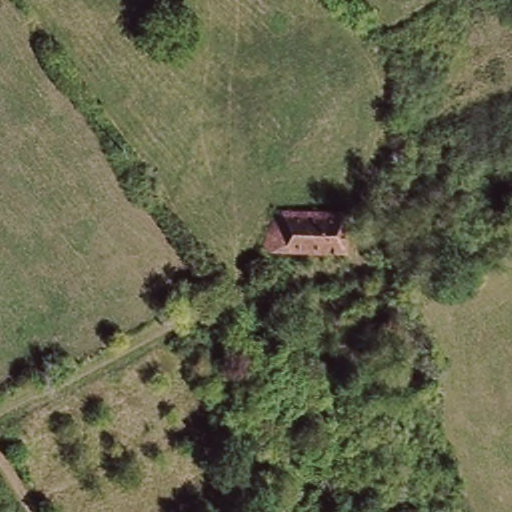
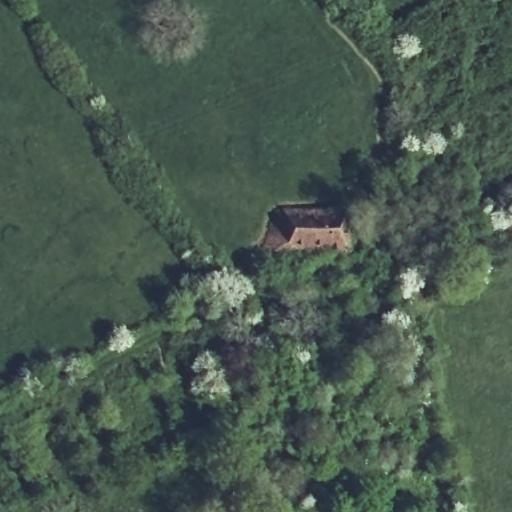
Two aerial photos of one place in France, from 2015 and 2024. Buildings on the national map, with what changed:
unchanged [(269,209),(353,210),(354,252),(266,249),(269,209)]

